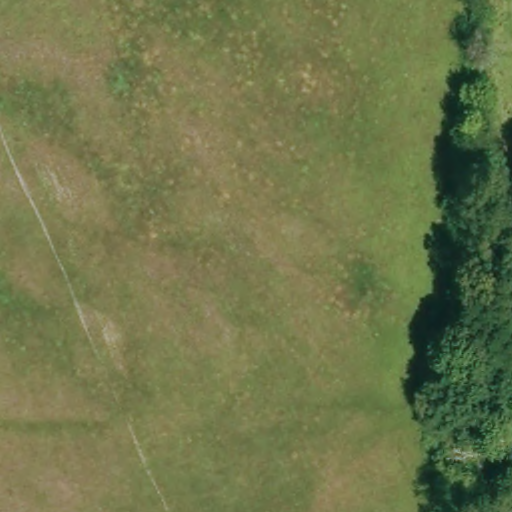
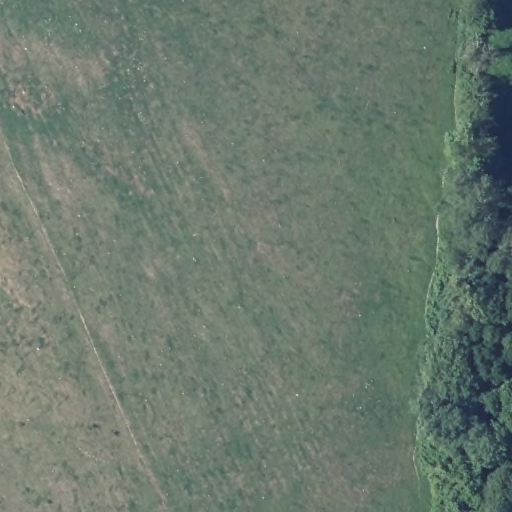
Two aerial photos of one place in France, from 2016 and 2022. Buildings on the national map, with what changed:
[]

